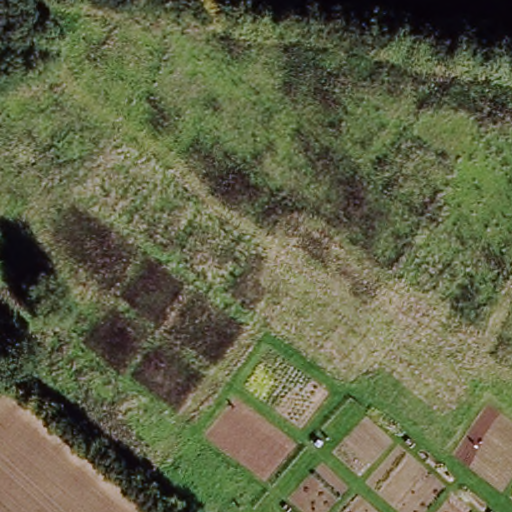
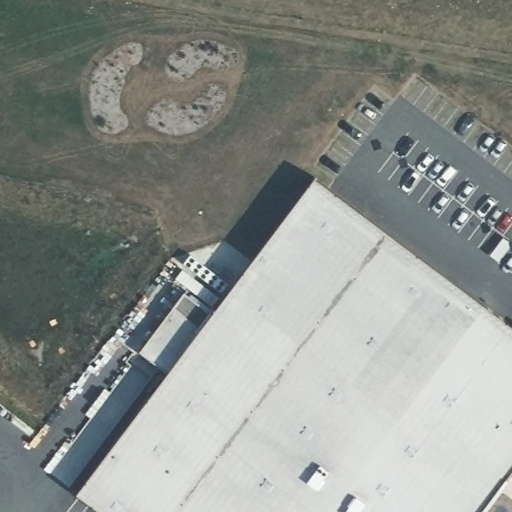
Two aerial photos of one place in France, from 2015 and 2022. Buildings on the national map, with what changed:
new [(512,474),(484,512),(108,512),(78,489),(170,369),(138,351),(173,304),(204,323),(314,178),(512,325),(512,474)]

